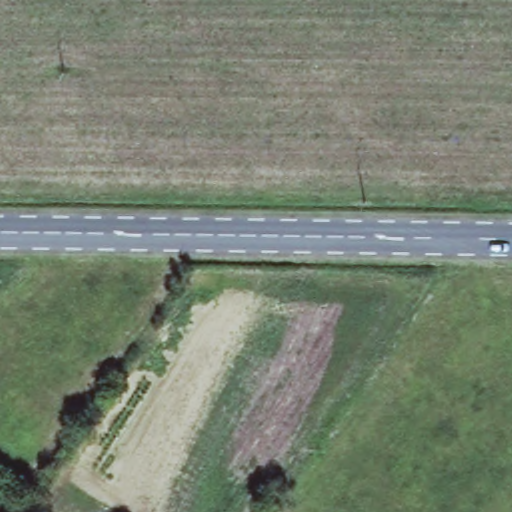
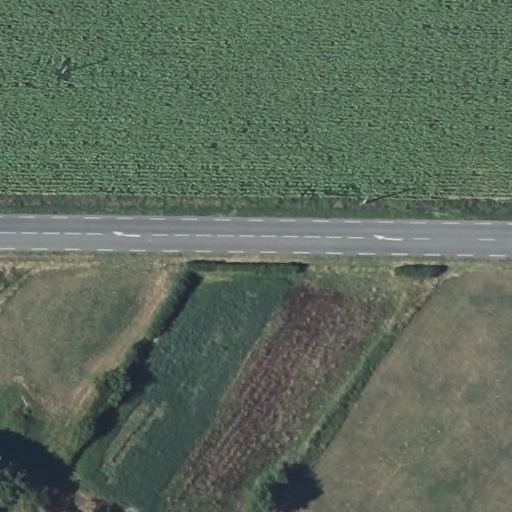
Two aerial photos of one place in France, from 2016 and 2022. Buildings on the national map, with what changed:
unchanged [(2,512),(0,512),(0,510),(3,511),(2,512)]

